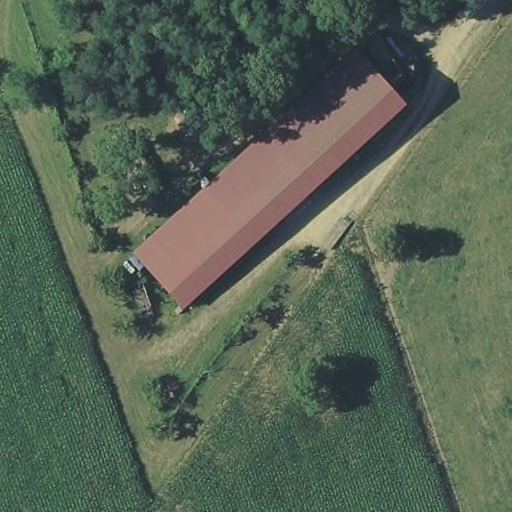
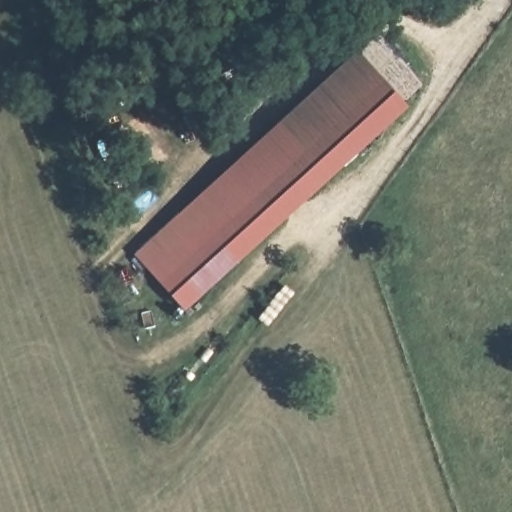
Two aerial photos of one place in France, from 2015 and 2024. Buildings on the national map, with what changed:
unchanged [(181,308),(140,261),(359,58),(401,106),(181,308)]

